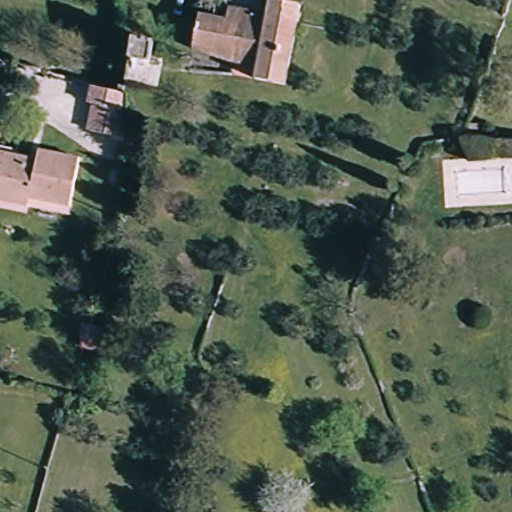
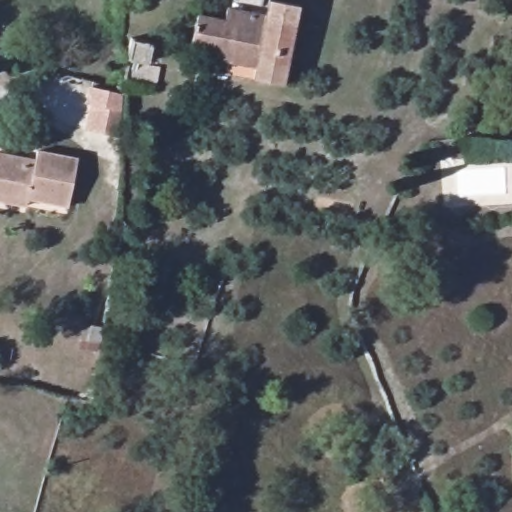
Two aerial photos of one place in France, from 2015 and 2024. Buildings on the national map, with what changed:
unchanged [(265,83),(248,81),(252,64),(190,48),(198,13),(222,19),(225,6),(227,0),(259,0),(269,3),(265,16),(292,24),(277,86),(265,83)]
unchanged [(123,37),(151,41),(145,65),(159,68),(156,88),(127,86),(128,79),(115,78),(123,37)]
unchanged [(120,134),(89,130),(93,108),(87,106),(90,87),(127,94),(120,134)]
unchanged [(0,155),(31,159),(32,149),(75,156),(67,207),(25,200),(25,208),(0,204),(0,155)]
unchanged [(96,340),(96,343),(74,339),(76,327),(97,331),(98,331),(96,340)]

